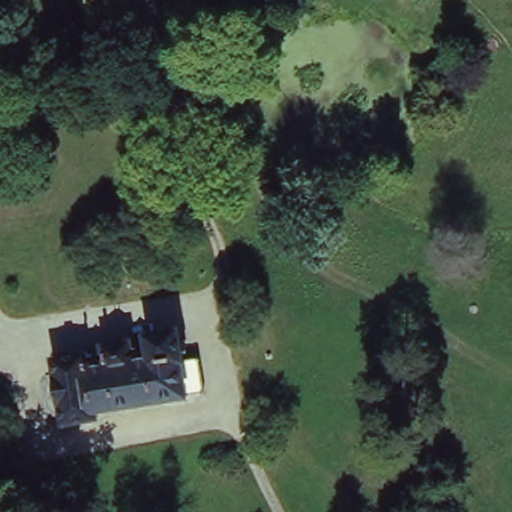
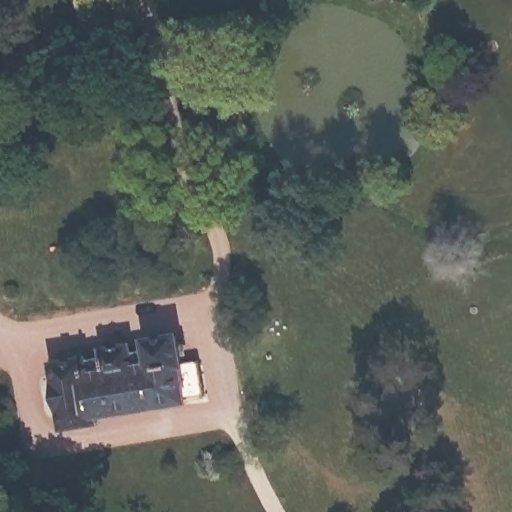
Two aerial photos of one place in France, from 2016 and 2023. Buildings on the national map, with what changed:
unchanged [(97,354),(126,350),(130,354),(149,351),(147,346),(175,341),(180,371),(199,368),(204,402),(186,405),(90,420),(91,427),(57,433),(47,367),(94,360),(97,354)]

